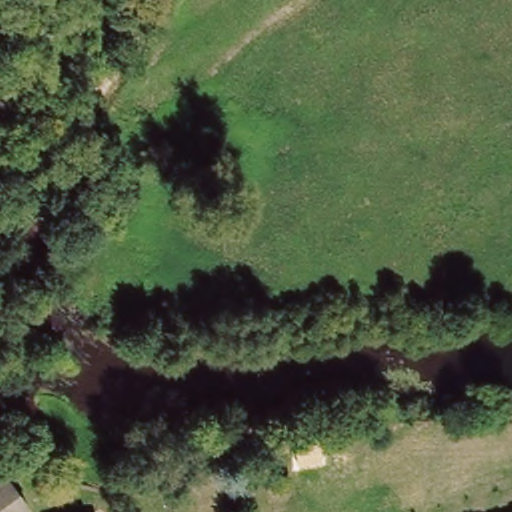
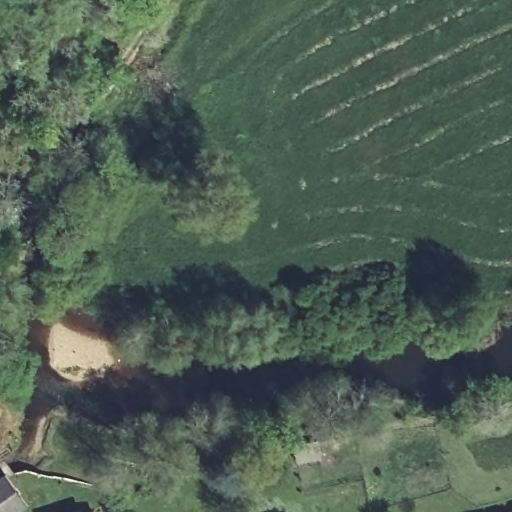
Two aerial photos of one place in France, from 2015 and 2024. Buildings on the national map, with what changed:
unchanged [(18,512),(0,512),(0,483),(3,480),(7,486),(22,509),(18,512)]

